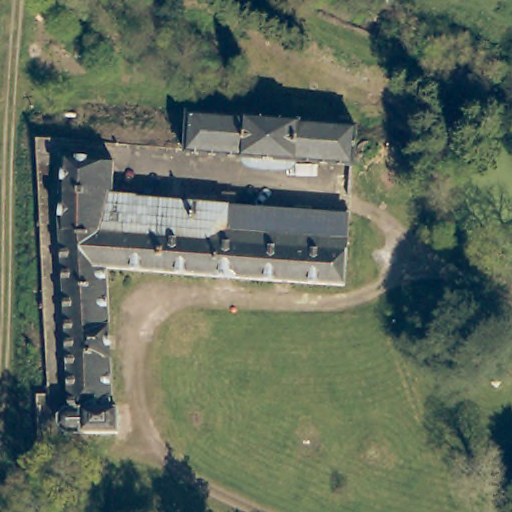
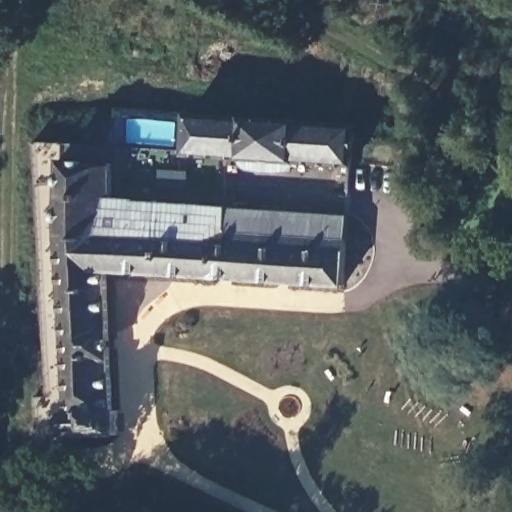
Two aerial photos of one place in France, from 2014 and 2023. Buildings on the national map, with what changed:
unchanged [(188,115),(356,126),(352,166),(185,155),(188,115)]
unchanged [(56,435),(49,428),(49,418),(56,411),(61,411),(54,160),(105,164),(103,199),(339,217),(334,286),(98,271),(103,410),(108,410),(109,435),(56,435)]
unchanged [(351,179),(351,199),(333,199),(334,179),(351,179)]

